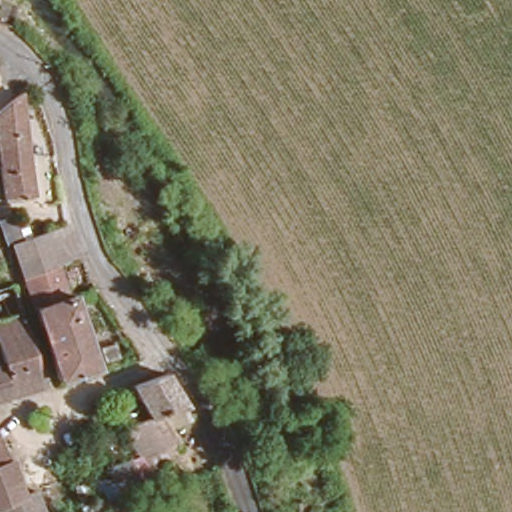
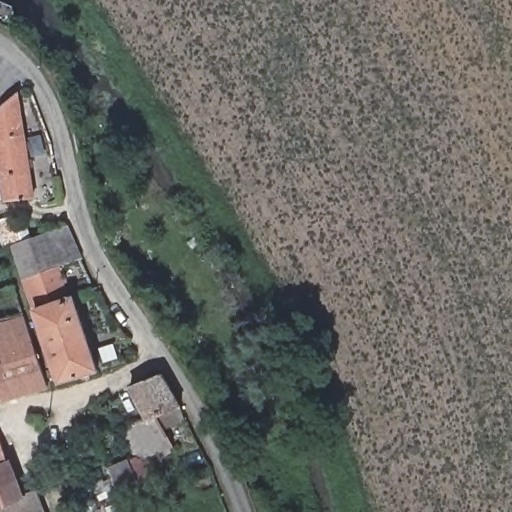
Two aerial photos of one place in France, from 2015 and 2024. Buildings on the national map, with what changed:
unchanged [(4,197),(0,170),(0,105),(19,92),(32,192),(4,197)]
unchanged [(59,260),(20,272),(9,240),(3,242),(0,232),(0,216),(6,213),(10,212),(19,237),(64,224),(78,254),(59,260)]
unchanged [(59,260),(69,294),(73,292),(100,365),(59,379),(48,352),(20,272),(59,260)]
unchanged [(0,400),(0,364),(4,362),(0,349),(0,322),(25,314),(48,384),(0,400)]
unchanged [(164,374),(182,403),(157,413),(169,440),(136,453),(122,424),(147,414),(128,384),(160,371),(164,374)]
unchanged [(37,486),(47,512),(0,512),(0,429),(26,492),(37,486)]
unchanged [(136,453),(169,440),(173,450),(154,458),(158,467),(151,470),(156,486),(112,502),(99,467),(136,453)]

